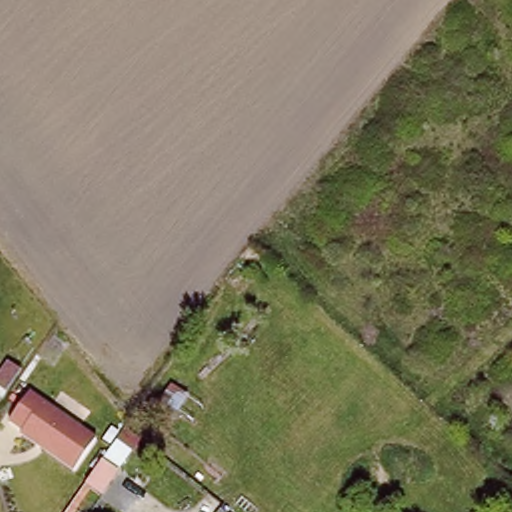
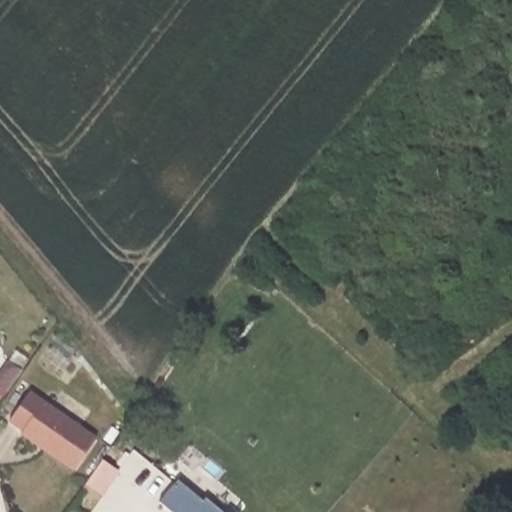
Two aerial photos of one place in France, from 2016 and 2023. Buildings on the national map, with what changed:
unchanged [(37,385),(100,429),(73,471),(9,422),(37,385)]
unchanged [(100,456),(120,469),(103,495),(84,482),(100,456)]
new [(170,512),(158,503),(177,480),(202,501),(205,498),(222,512),(170,512)]
demolished [(243,512),(224,512),(233,502),(243,512)]

